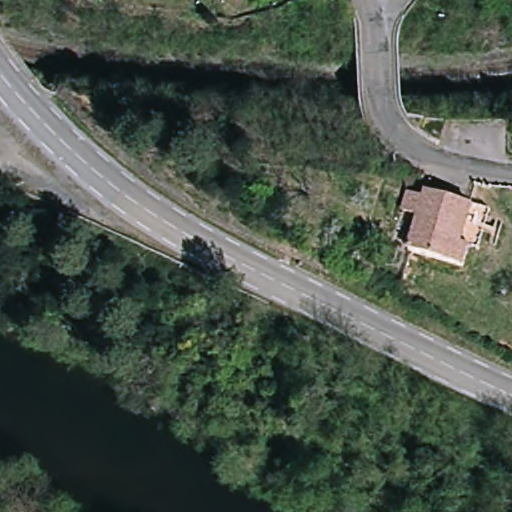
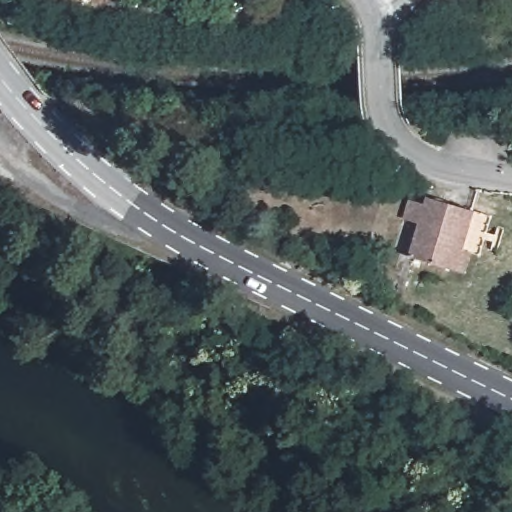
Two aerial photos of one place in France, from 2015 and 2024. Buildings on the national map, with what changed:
unchanged [(410,255),(422,217),(413,215),(405,213),(411,197),(418,200),(427,202),(429,195),(472,209),(492,215),(480,255),(467,252),(460,272),(410,255)]

